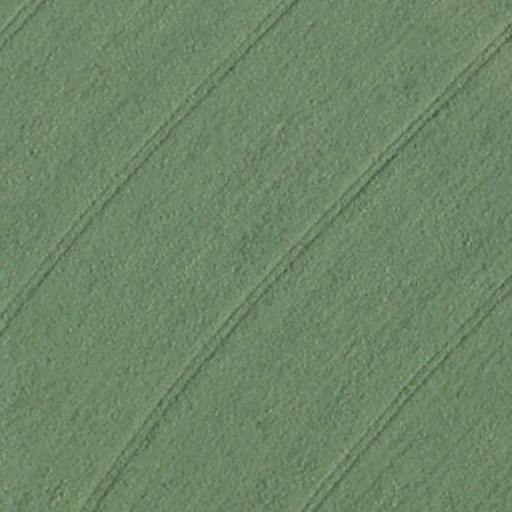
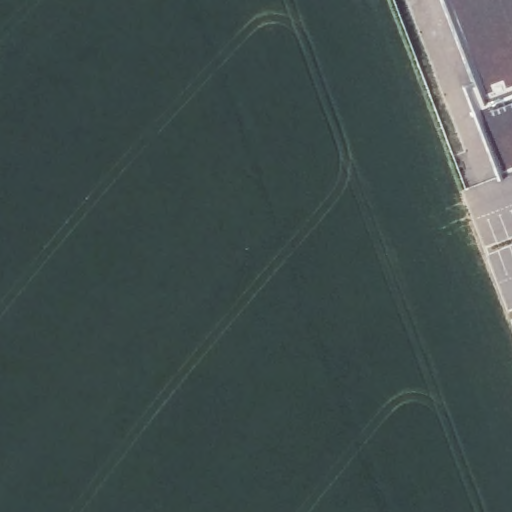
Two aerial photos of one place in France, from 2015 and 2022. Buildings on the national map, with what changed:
new [(498,178),(465,86),(474,84),(441,0),(512,0),(512,173),(498,178)]

